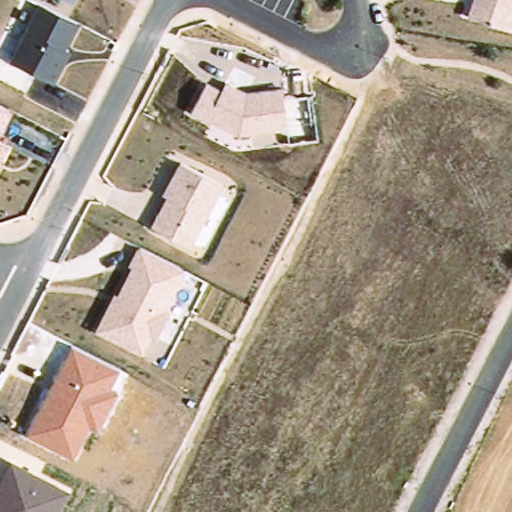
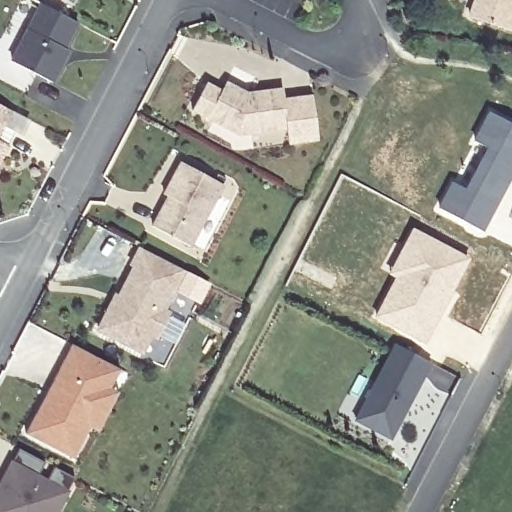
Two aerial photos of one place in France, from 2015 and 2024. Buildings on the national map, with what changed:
unchanged [(75,2),(71,0),(76,0),(75,2)]
unchanged [(469,19),(474,0),(512,0),(512,32),(469,19)]
unchanged [(80,22),(67,49),(70,50),(55,81),(11,61),(39,4),(80,22)]
unchanged [(247,90),(283,86),(284,99),(314,94),(319,139),(289,142),(288,130),(239,135),(191,111),(205,82),(220,90),(225,81),(247,90)]
new [(451,179),(464,186),(485,146),(472,139),(488,109),(512,122),(512,176),(484,231),(437,206),(451,179)]
unchanged [(0,141),(0,121),(8,125),(0,141)]
unchanged [(0,166),(0,141),(10,146),(0,166)]
unchanged [(155,226),(170,199),(164,195),(183,162),(225,185),(192,246),(155,226)]
new [(394,276),(387,272),(412,226),(470,257),(425,343),(374,315),(394,276)]
unchanged [(187,271),(167,308),(171,310),(155,340),(152,338),(144,353),(95,328),(115,291),(117,293),(132,265),(129,263),(138,245),(187,271)]
unchanged [(72,343),(121,369),(112,387),(119,391),(98,432),(90,428),(74,458),(24,432),(72,343)]
new [(392,438),(359,420),(397,345),(432,363),(409,408),(403,418),(392,438)]
unchanged [(59,512),(0,512),(0,479),(10,459),(70,490),(59,512)]

